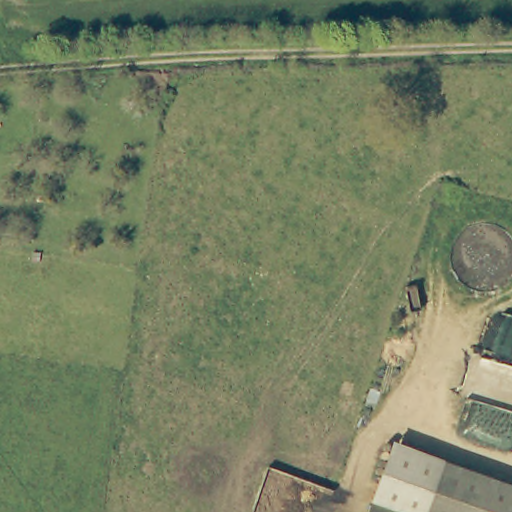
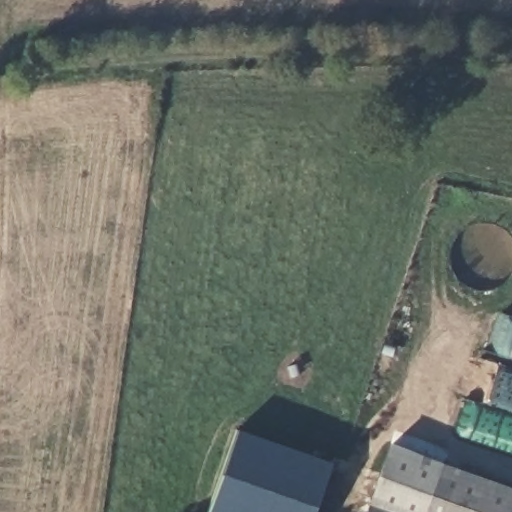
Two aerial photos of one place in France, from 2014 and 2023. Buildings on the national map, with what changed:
new [(316,512),(209,512),(238,429),(334,463),(316,512)]
unchanged [(390,445),(512,487),(512,512),(367,512),(390,445)]

